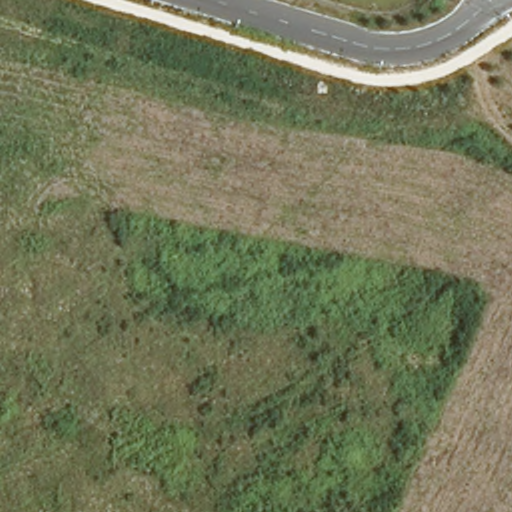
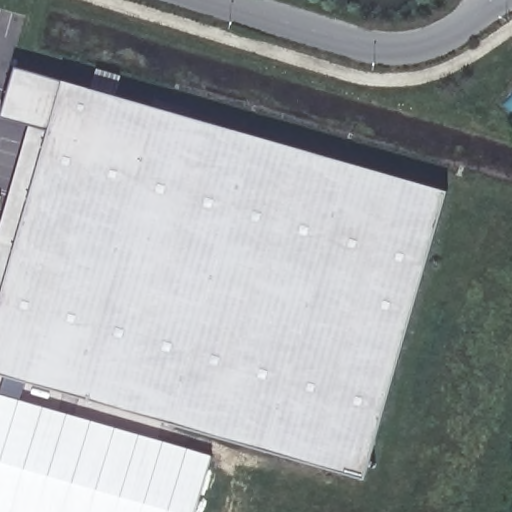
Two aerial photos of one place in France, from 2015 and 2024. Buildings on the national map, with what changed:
new [(2,117),(17,67),(62,80),(447,190),(363,478),(0,373),(0,223),(27,124),(2,117)]
new [(196,512),(0,512),(0,394),(212,456),(196,512)]

